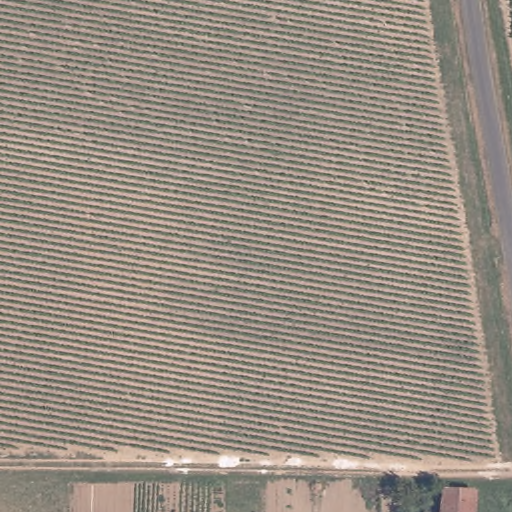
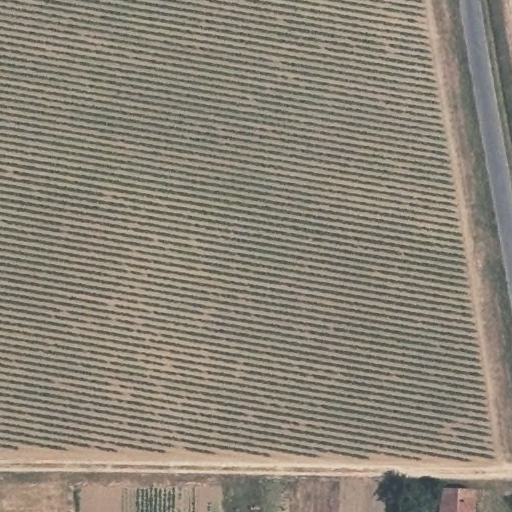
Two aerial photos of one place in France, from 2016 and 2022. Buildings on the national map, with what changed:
unchanged [(477,494),(475,512),(439,512),(440,491),(477,494)]

